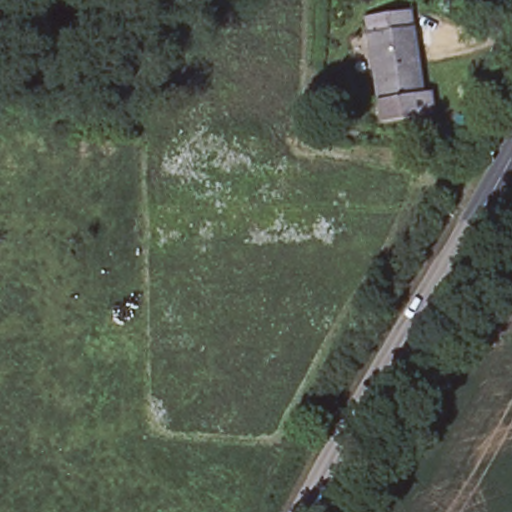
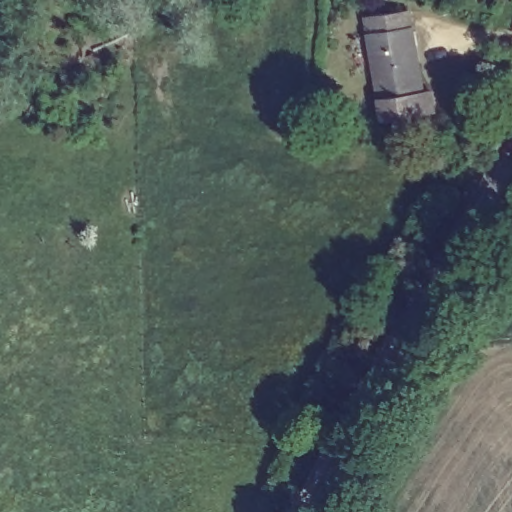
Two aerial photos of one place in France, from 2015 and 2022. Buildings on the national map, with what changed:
unchanged [(378,95),(366,29),(364,12),(407,6),(409,22),(420,88),(378,95)]
unchanged [(420,88),(428,87),(431,109),(381,117),(378,95),(420,88)]

